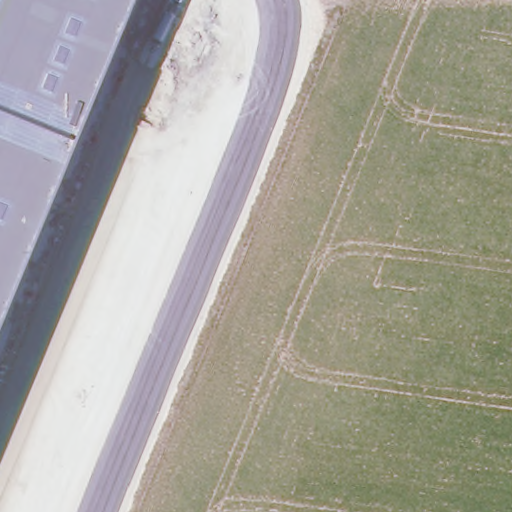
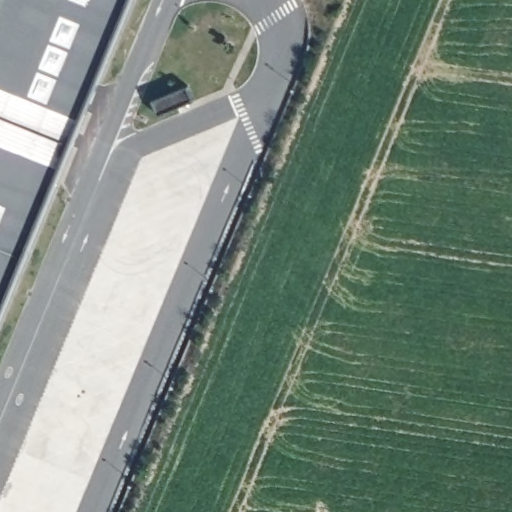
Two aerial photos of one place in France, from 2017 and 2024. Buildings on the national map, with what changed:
unchanged [(0,0),(132,0),(0,321),(0,0)]

